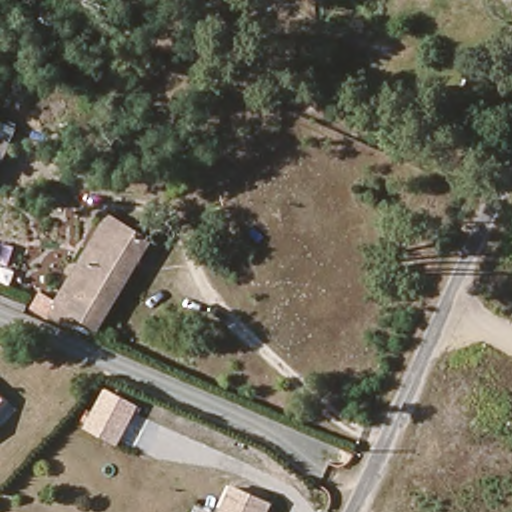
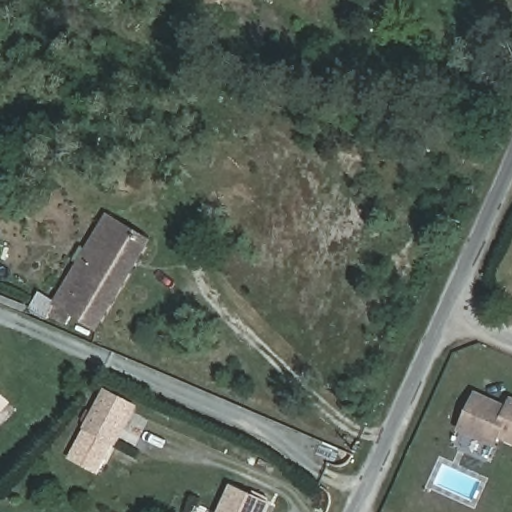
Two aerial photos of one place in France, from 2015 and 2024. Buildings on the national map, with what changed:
unchanged [(0,180),(0,124),(20,134),(0,180)]
unchanged [(144,237),(91,330),(60,312),(115,220),(144,237)]
new [(500,440),(496,449),(457,432),(476,392),(508,406),(511,397),(512,398),(512,445),(500,440)]
unchanged [(135,408),(129,420),(116,446),(86,431),(100,404),(105,393),(135,408)]
unchanged [(266,512),(221,512),(232,488),(269,505),(266,512)]

